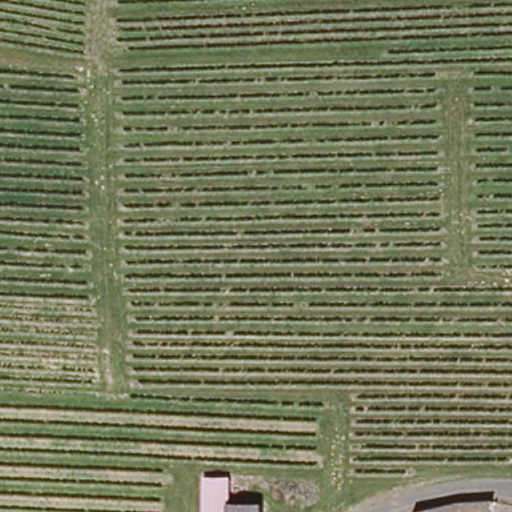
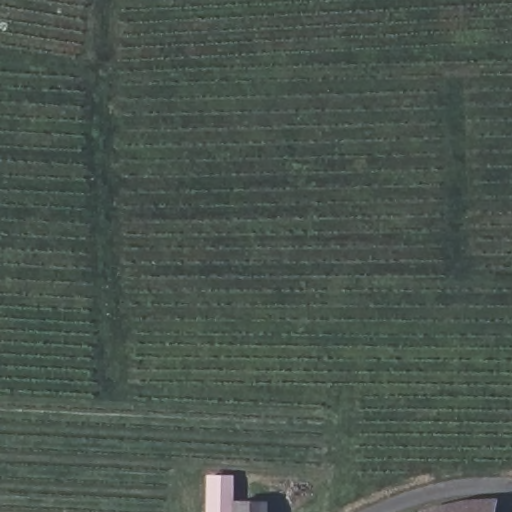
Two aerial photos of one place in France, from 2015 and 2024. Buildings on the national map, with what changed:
unchanged [(202,477),(224,477),(224,483),(240,483),(241,502),(260,503),(260,512),(202,512),(202,477)]
unchanged [(463,502),(478,502),(493,502),(491,512),(426,512),(463,502)]

